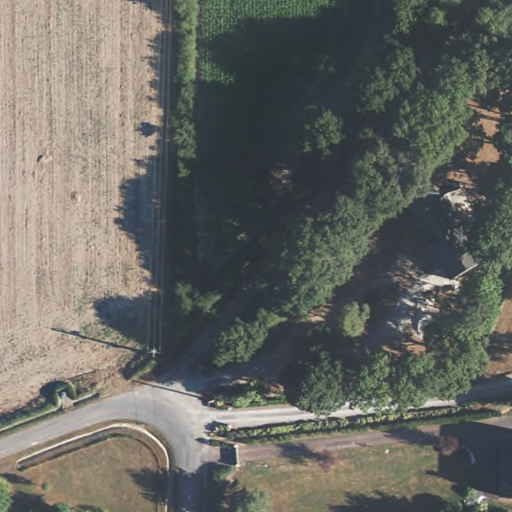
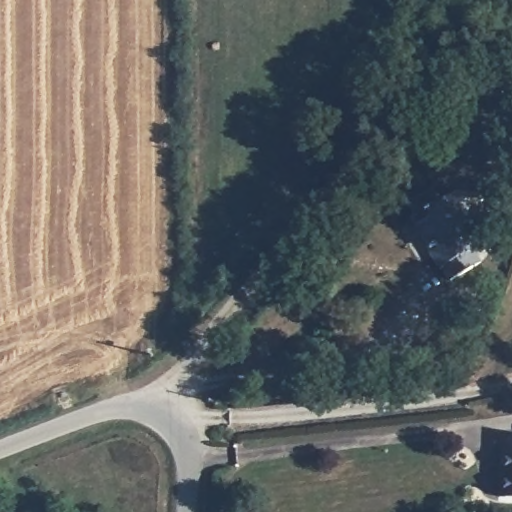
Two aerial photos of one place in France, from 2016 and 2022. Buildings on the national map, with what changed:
unchanged [(470,252),(468,254),(477,267),(446,286),(437,271),(435,272),(405,223),(440,202),(470,252)]
unchanged [(500,437),(512,438),(512,499),(500,498),(496,497),(498,453),(500,437)]

